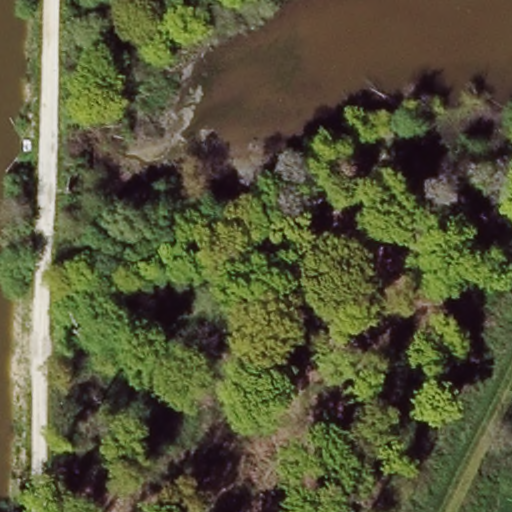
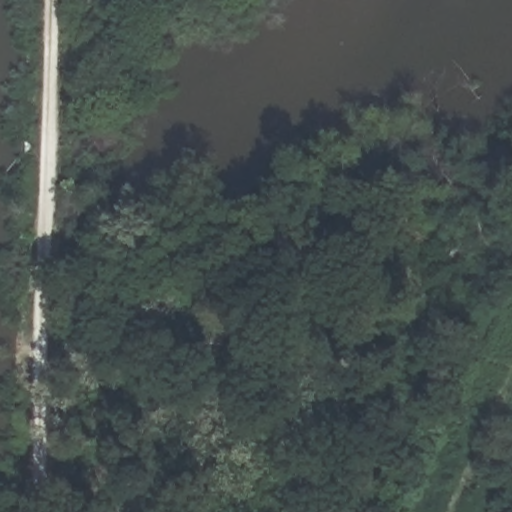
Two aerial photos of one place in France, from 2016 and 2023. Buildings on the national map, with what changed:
[]

